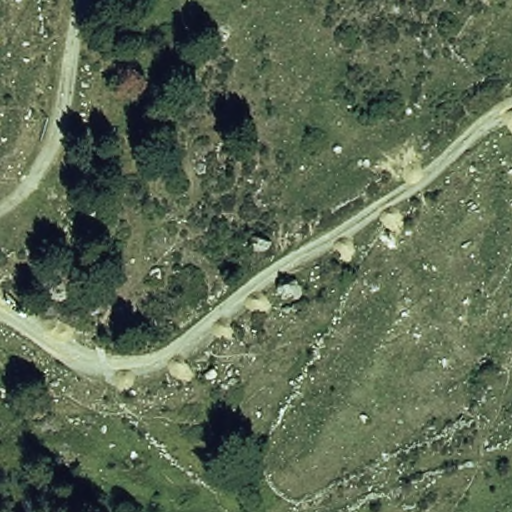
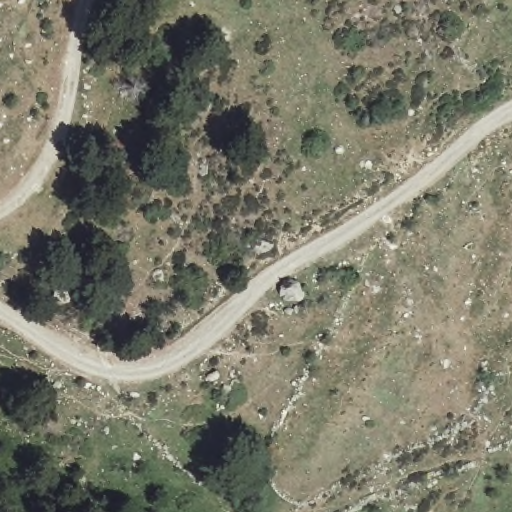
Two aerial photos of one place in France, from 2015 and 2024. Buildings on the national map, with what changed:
[]

